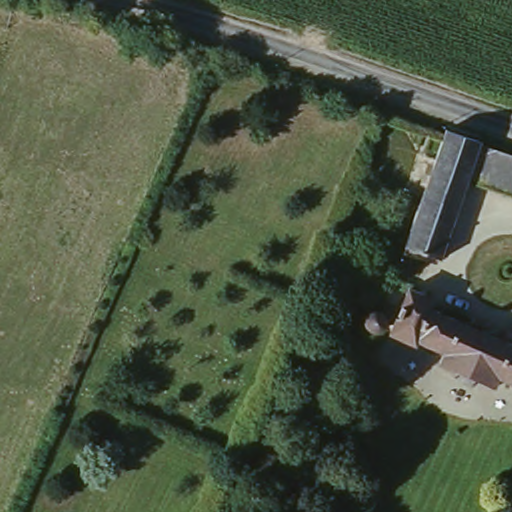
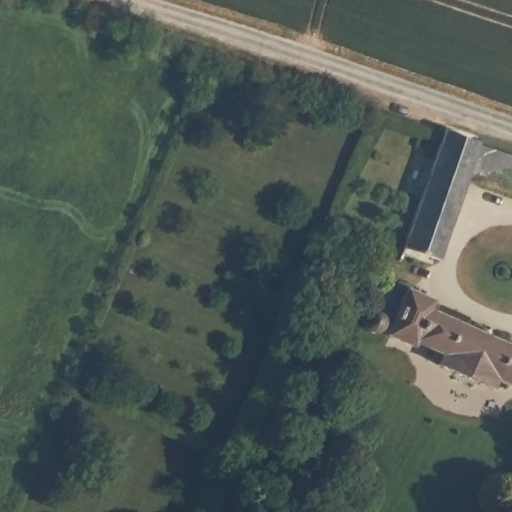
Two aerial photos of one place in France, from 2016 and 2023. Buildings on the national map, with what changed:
unchanged [(449,128),(481,140),(479,148),(465,181),(432,257),(397,242),(445,136),(449,128)]
unchanged [(512,196),(465,181),(479,148),(512,158),(512,196)]
unchanged [(417,293),(414,304),(512,346),(512,383),(489,374),(483,387),(427,363),(431,347),(403,334),(398,343),(377,333),(385,315),(399,284),(417,293)]
unchanged [(381,293),(377,300),(373,297),(366,294),(368,287),(375,290),(381,293)]
unchanged [(372,304),(373,306),(374,310),(372,315),(367,316),(363,315),(360,313),(358,310),(359,305),(363,302),(366,301),(369,302),(372,304)]

